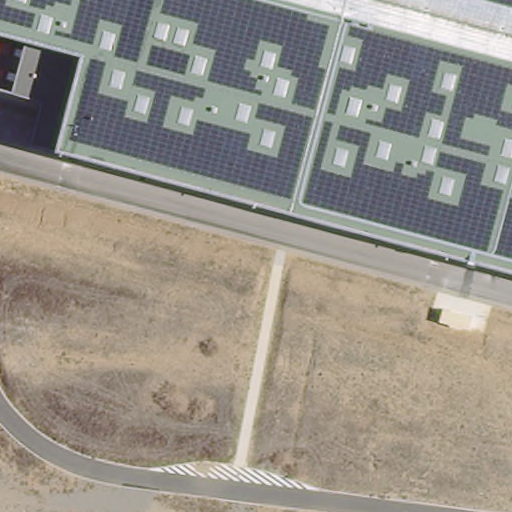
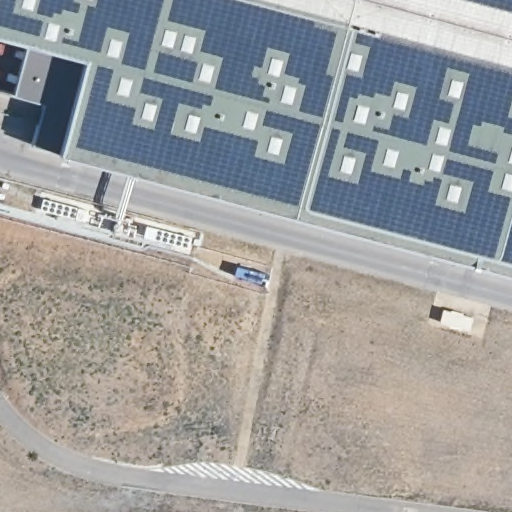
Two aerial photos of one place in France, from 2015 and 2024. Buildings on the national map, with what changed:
unchanged [(8,90),(22,36),(0,31),(0,0),(512,0),(512,269),(27,139),(38,98),(8,90)]

